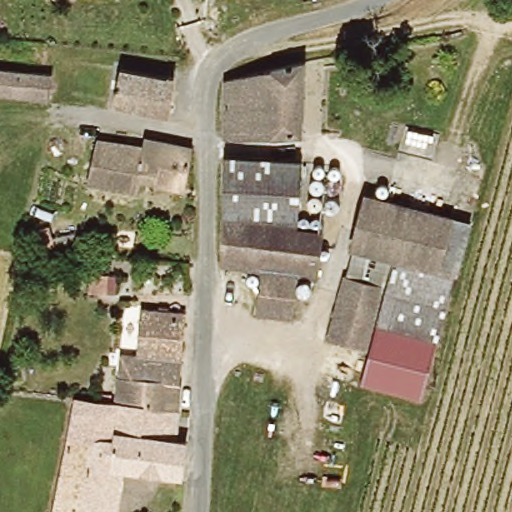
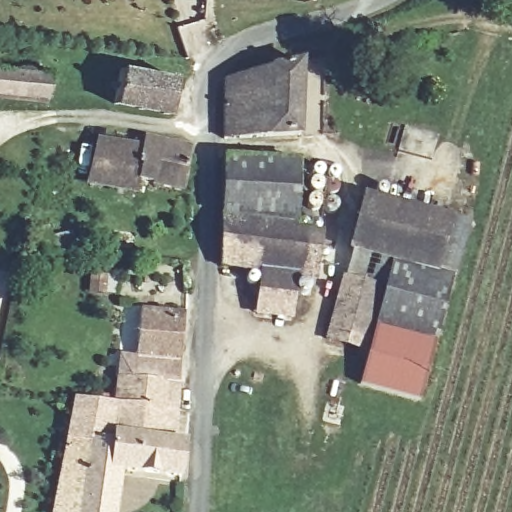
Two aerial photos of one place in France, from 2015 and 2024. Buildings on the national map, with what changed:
unchanged [(302,135),(225,139),(225,84),(230,78),(300,63),(302,135)]
unchanged [(168,117),(115,108),(120,66),(174,74),(168,117)]
unchanged [(48,98),(0,94),(0,68),(50,73),(48,98)]
unchanged [(144,147),(145,142),(185,150),(181,176),(189,178),(187,190),(137,181),(135,195),(76,185),(79,170),(94,173),(97,142),(144,147)]
unchanged [(224,216),(224,155),(298,157),(303,226),(326,230),(313,275),(296,272),(264,267),(240,264),(224,263),(224,216)]
unchanged [(351,249),(364,196),(450,218),(463,221),(450,276),(447,288),(408,278),(396,326),(376,321),(394,260),(351,249)]
unchanged [(296,272),(290,311),(258,307),(264,267),(296,272)]
unchanged [(92,274),(109,274),(109,293),(92,292),(92,274)]
unchanged [(408,278),(447,288),(435,336),(396,326),(408,278)]
unchanged [(343,279),(381,289),(372,326),(365,349),(328,339),(333,316),(343,279)]
unchanged [(120,345),(137,347),(141,309),(185,312),(175,411),(114,405),(120,345)]
unchanged [(420,401),(362,386),(375,331),(436,345),(420,401)]
unchanged [(117,512),(73,512),(66,512),(56,511),(72,400),(114,405),(175,411),(172,442),(185,442),(182,474),(122,470),(117,512)]
unchanged [(66,512),(56,512),(56,511),(66,512)]

